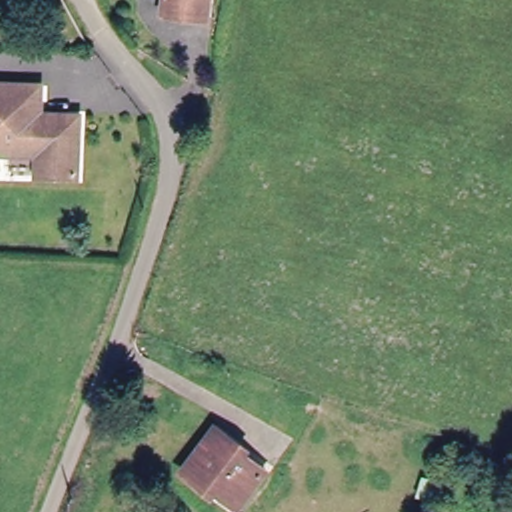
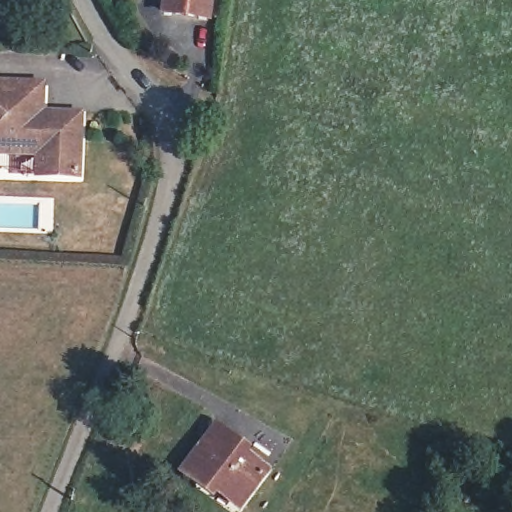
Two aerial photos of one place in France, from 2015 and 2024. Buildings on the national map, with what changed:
unchanged [(206,22),(164,17),(166,0),(209,0),(206,22)]
unchanged [(0,159),(0,90),(34,90),(33,120),(72,119),(72,136),(72,180),(48,179),(32,179),(32,159),(0,159)]
unchanged [(231,502),(208,485),(203,490),(186,477),(217,437),(232,449),(229,453),(261,475),(249,490),(236,506),(231,502)]

